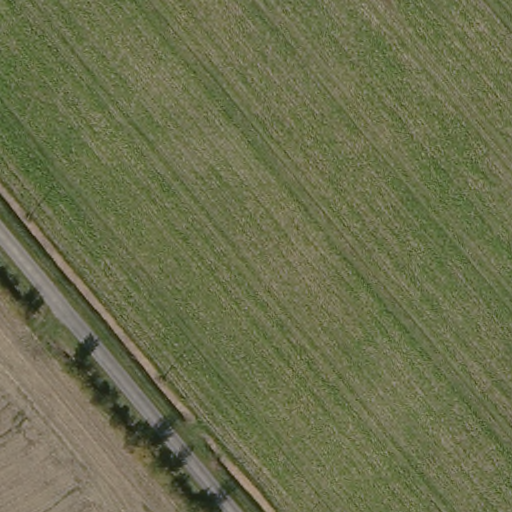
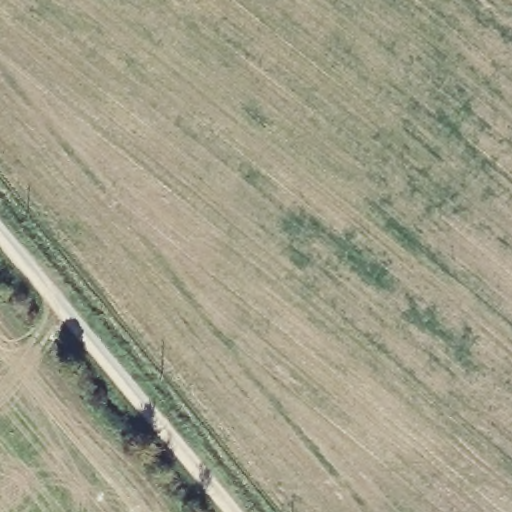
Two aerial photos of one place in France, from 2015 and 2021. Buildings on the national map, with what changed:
[]

